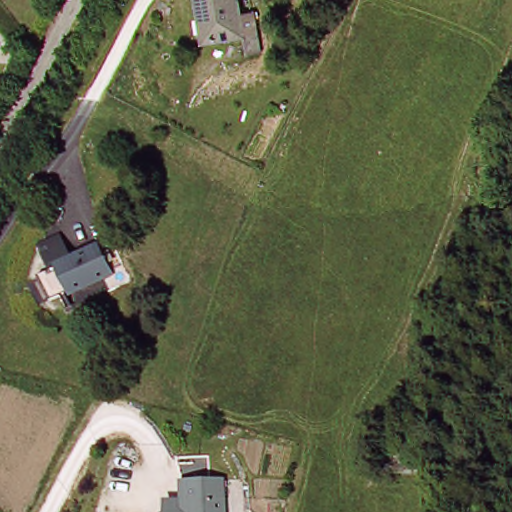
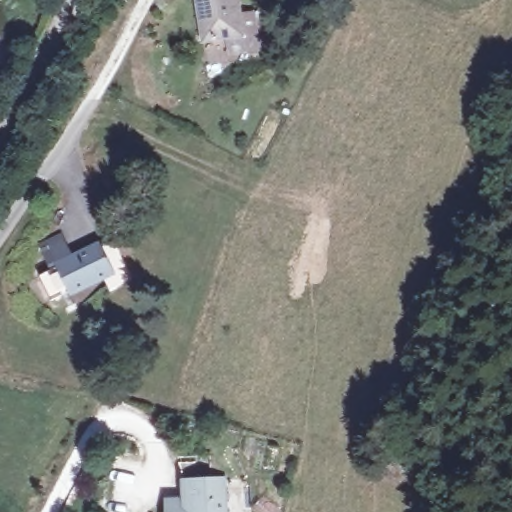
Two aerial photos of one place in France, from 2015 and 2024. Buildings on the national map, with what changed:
unchanged [(201,0),(241,0),(245,34),(206,39),(201,0)]
unchanged [(129,277),(106,287),(98,272),(47,298),(34,273),(108,235),(129,277)]
unchanged [(191,492),(229,490),(230,512),(190,512),(192,510),(191,492)]

